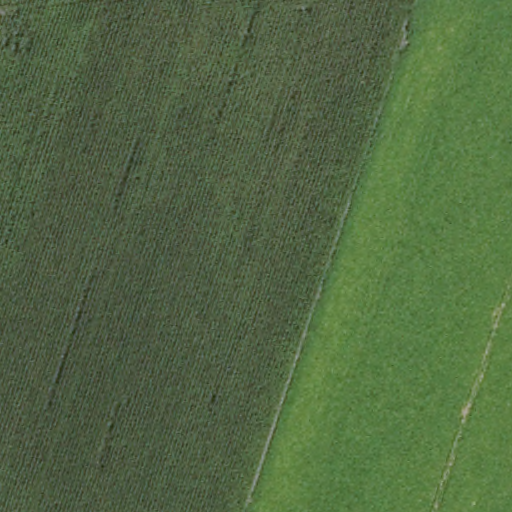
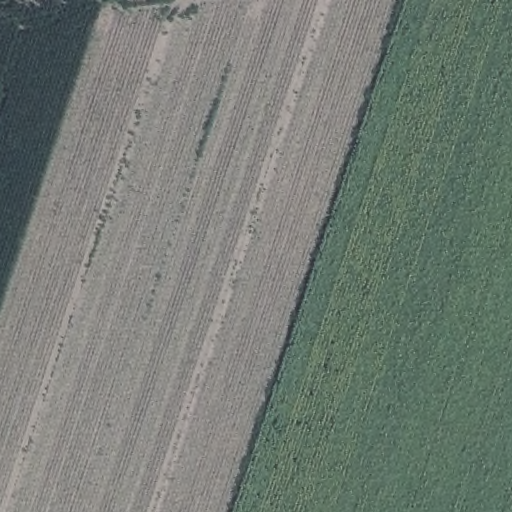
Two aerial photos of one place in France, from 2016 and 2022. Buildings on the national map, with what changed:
[]

